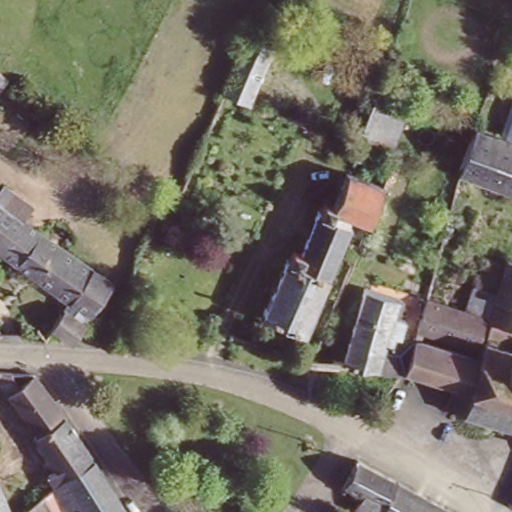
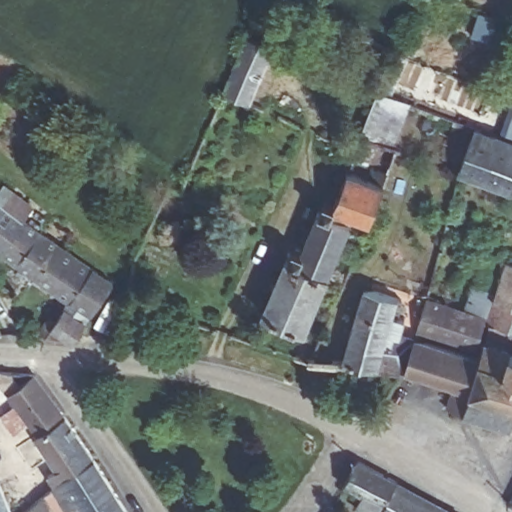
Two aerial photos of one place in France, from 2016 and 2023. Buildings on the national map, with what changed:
unchanged [(248,35),(275,47),(250,102),(224,92),(248,35)]
unchanged [(380,93),(393,97),(413,106),(397,151),(364,139),(380,93)]
unchanged [(488,124),(512,133),(512,186),(465,170),(482,125),(488,124)]
unchanged [(286,261),(288,261),(293,250),(302,254),(322,211),(324,212),(328,202),(337,205),(348,178),(376,187),(380,177),(388,180),(372,228),(353,224),(302,334),(264,316),(262,315),(286,261)]
unchanged [(112,283),(90,314),(70,300),(0,251),(0,203),(40,235),(92,270),(112,282),(112,283)]
unchanged [(487,318),(482,317),(483,314),(494,278),(502,255),(512,258),(512,338),(485,328),(487,318)]
unchanged [(425,287),(465,299),(473,272),(494,278),(483,314),(482,317),(476,339),(415,321),(425,287)]
unchanged [(343,365),(360,286),(393,292),(383,336),(390,336),(388,345),(408,344),(400,370),(343,365)]
unchanged [(63,310),(83,323),(69,342),(50,328),(63,310)]
unchanged [(3,334),(0,335),(0,329),(3,334)]
unchanged [(482,336),(512,346),(512,406),(507,423),(509,426),(507,427),(506,428),(503,424),(485,418),(485,421),(481,420),(482,417),(460,411),(459,413),(455,412),(457,410),(442,406),(450,386),(400,370),(408,344),(412,330),(477,350),(482,336)]
unchanged [(32,374),(97,461),(54,485),(47,475),(56,469),(32,437),(34,436),(0,388),(0,372),(32,374)]
unchanged [(399,479),(386,503),(388,504),(383,512),(376,512),(358,502),(364,491),(345,481),(357,457),(399,479)]
unchanged [(97,461),(126,512),(82,512),(80,507),(70,512),(67,512),(54,485),(97,461)]
unchanged [(15,509),(9,512),(0,512),(0,471),(15,509)]
unchanged [(386,503),(399,479),(460,512),(383,512),(388,504),(386,503)]
unchanged [(512,494),(512,499),(510,498),(512,494)]
unchanged [(17,508),(18,512),(9,512),(15,509),(17,508)]

